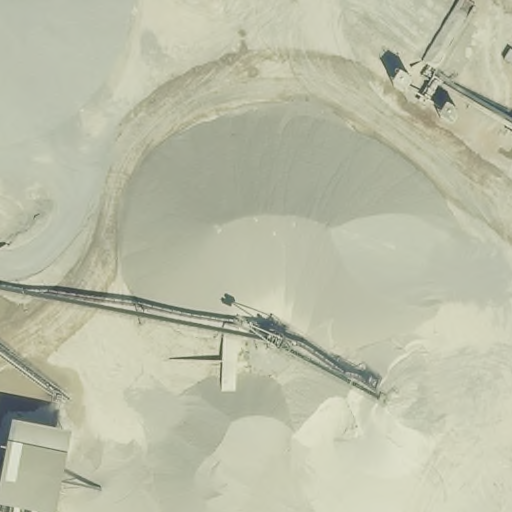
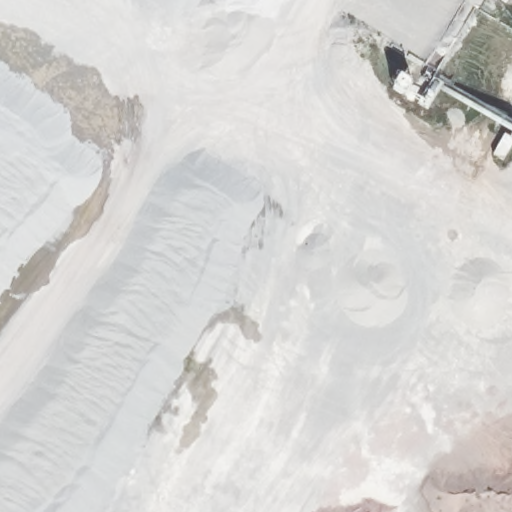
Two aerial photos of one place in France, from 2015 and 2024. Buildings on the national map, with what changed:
demolished [(15,512),(0,510),(0,470),(8,423),(74,435),(58,512),(15,512)]

